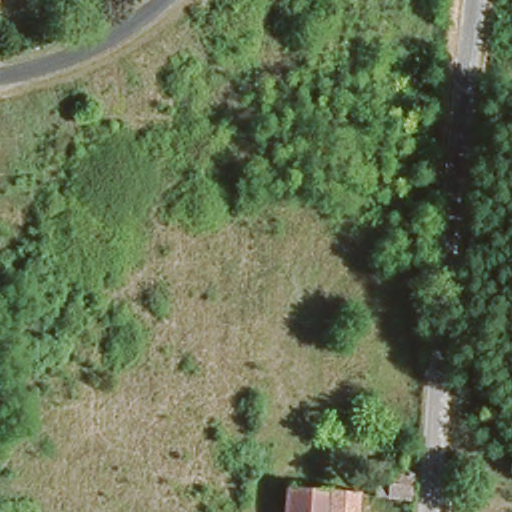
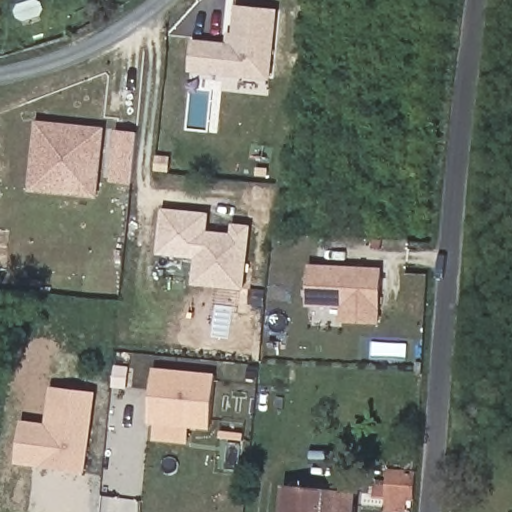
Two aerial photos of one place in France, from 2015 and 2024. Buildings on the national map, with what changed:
new [(225,41),(225,30),(229,30),(233,2),(278,7),(270,77),(188,70),(189,39),(225,41)]
new [(103,124),(97,195),(26,190),(33,119),(103,124)]
new [(133,130),(129,181),(107,179),(111,127),(133,130)]
new [(208,212),(207,230),(229,231),(230,222),(248,224),(244,290),(189,286),(190,259),(154,256),(159,207),(208,212)]
new [(381,266),(379,322),(338,321),(338,307),(304,304),(308,262),(381,266)]
new [(215,372),(210,427),(145,422),(151,367),(215,372)]
new [(91,393),(81,470),(17,463),(23,423),(48,426),(51,388),(91,393)]
unchanged [(369,486),(369,478),(369,477),(386,478),(387,467),(394,467),(394,460),(398,461),(398,455),(414,457),(413,475),(412,493),(369,489),(369,486)]
unchanged [(319,482),(352,485),(353,485),(350,512),(281,512),(284,479),(319,482)]

